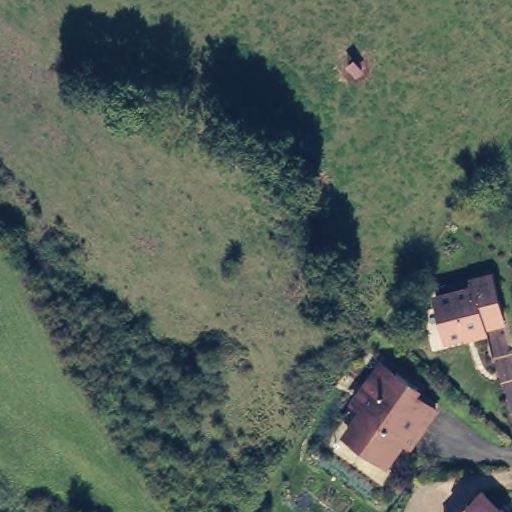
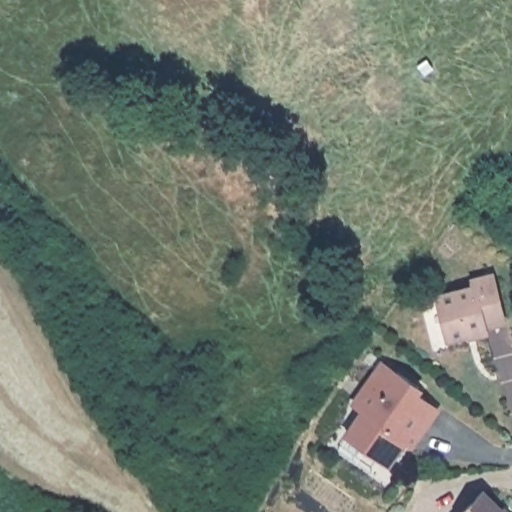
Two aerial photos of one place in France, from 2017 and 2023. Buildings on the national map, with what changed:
unchanged [(494,317),(475,322),(475,325),(437,334),(426,292),(464,282),(462,276),(482,270),(494,317)]
unchanged [(378,462),(355,446),(338,434),(342,429),(355,410),(345,403),(369,370),(374,363),(387,372),(409,388),(404,395),(426,411),(407,438),(402,445),(394,440),(378,462)]
unchanged [(469,495),(482,481),(487,485),(512,510),(512,512),(452,512),(456,508),(469,495)]

